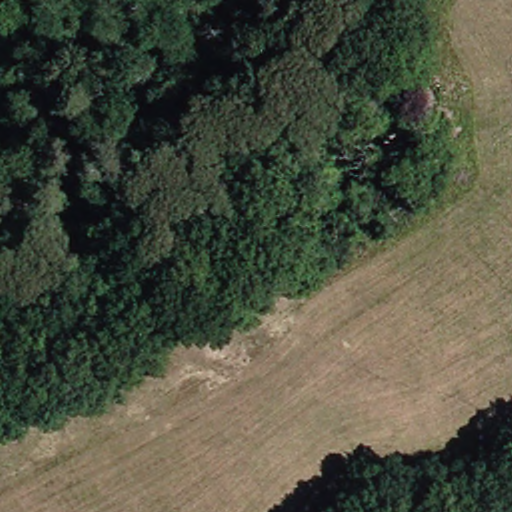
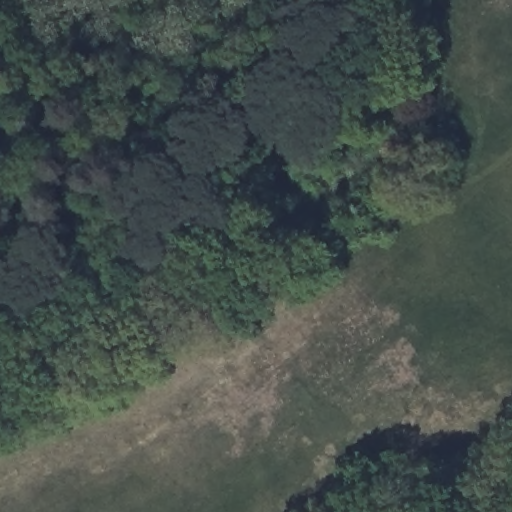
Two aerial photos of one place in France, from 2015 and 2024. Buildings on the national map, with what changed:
unchanged [(441,97),(426,107),(414,88),(429,78),(441,97)]

